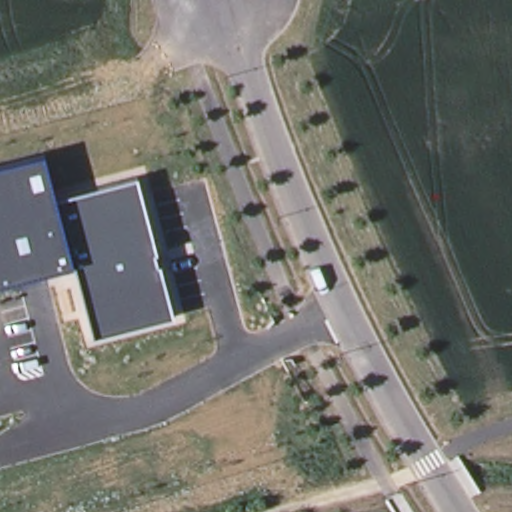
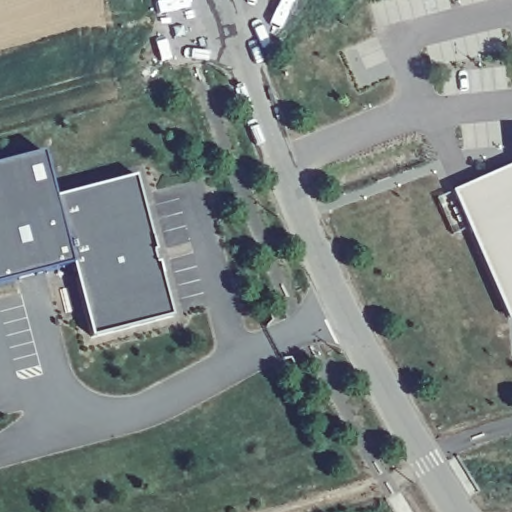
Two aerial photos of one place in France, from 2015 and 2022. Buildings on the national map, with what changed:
unchanged [(45,151),(56,195),(137,173),(175,317),(92,340),(73,263),(0,282),(0,162),(45,151)]
new [(512,314),(509,315),(455,191),(512,167),(512,314)]

